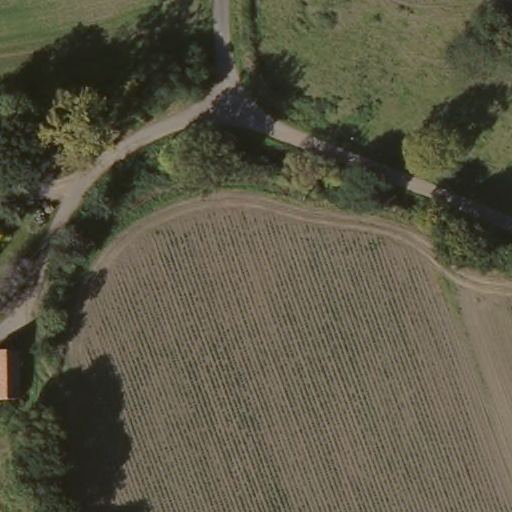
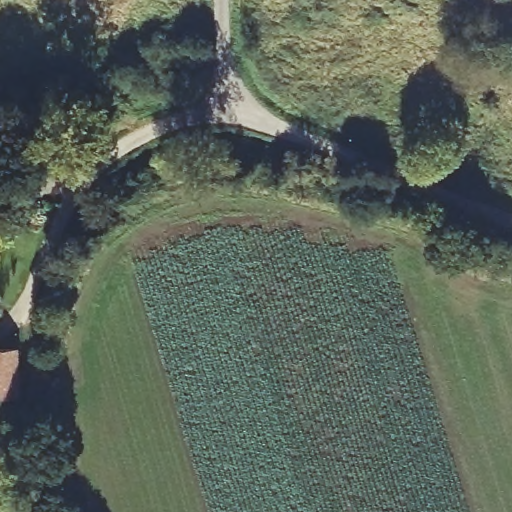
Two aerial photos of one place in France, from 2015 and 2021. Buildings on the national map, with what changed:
unchanged [(19,362),(10,411),(0,409),(0,359),(19,362)]

